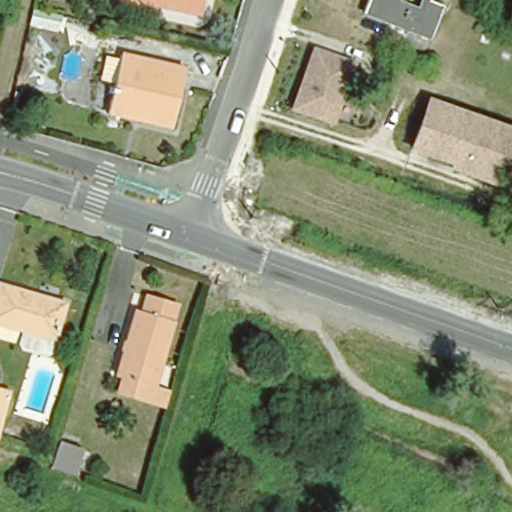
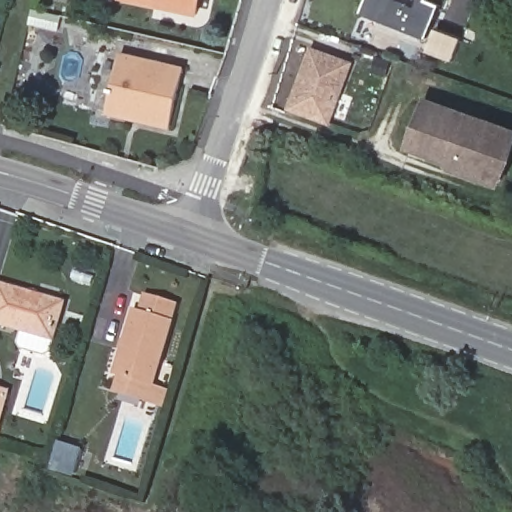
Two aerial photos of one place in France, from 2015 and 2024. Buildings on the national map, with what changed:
unchanged [(207,14),(140,0),(209,0),(207,14)]
unchanged [(371,0),(398,0),(396,4),(416,13),(421,0),(431,0),(429,4),(443,10),(431,43),(364,18),(371,0)]
unchanged [(337,125),(290,110),(314,47),(359,64),(337,125)]
unchanged [(175,132),(112,117),(125,62),(188,75),(175,132)]
unchanged [(507,190),(446,170),(447,165),(407,151),(426,99),(512,126),(512,173),(507,190)]
unchanged [(0,324),(0,286),(64,304),(54,340),(0,324)]
unchanged [(153,392),(169,397),(164,412),(117,397),(123,379),(118,378),(135,312),(143,314),(147,297),(178,306),(154,389),(153,392)]
unchanged [(0,438),(0,395),(10,398),(0,438)]
unchanged [(53,470),(61,447),(89,457),(79,480),(53,470)]

